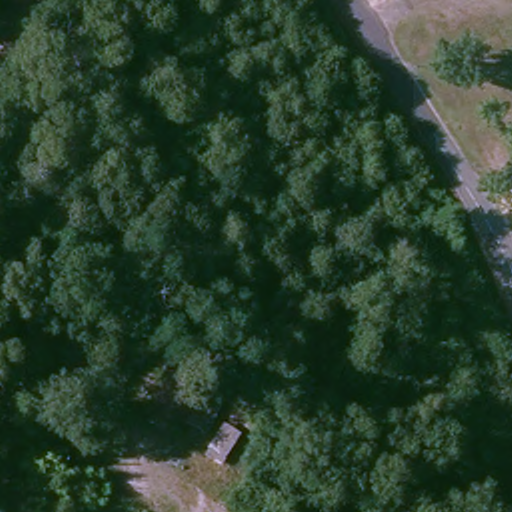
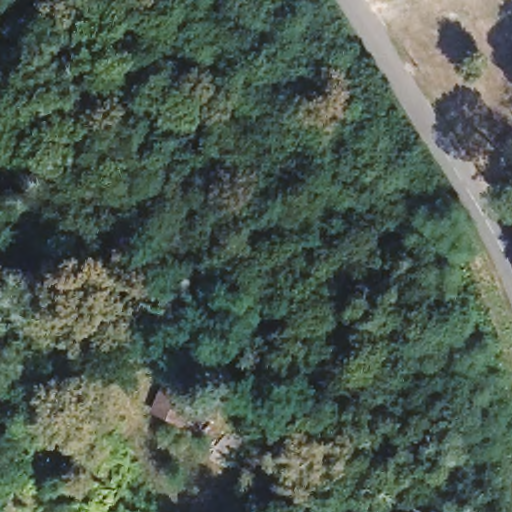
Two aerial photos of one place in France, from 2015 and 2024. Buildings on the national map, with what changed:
unchanged [(173,436),(150,422),(171,388),(196,402),(173,436)]

